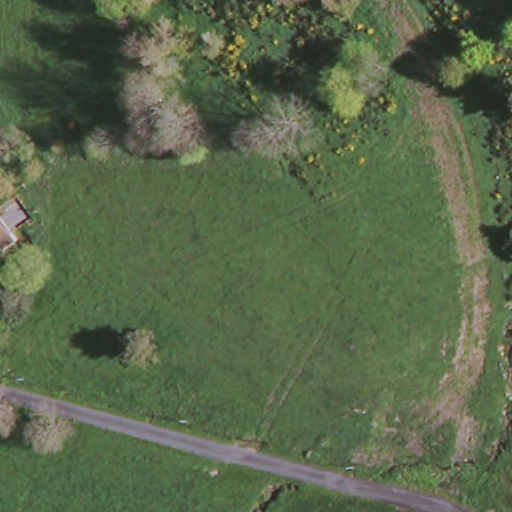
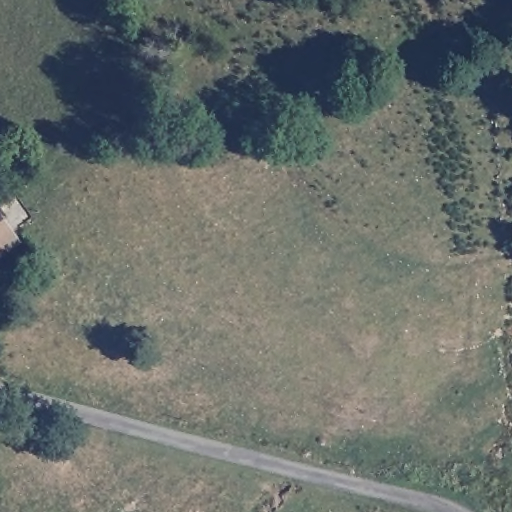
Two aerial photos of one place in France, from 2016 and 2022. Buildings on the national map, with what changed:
unchanged [(25,241),(0,259),(0,210),(25,241)]

